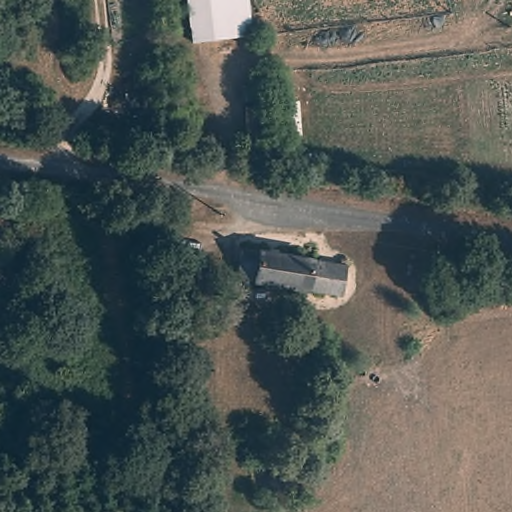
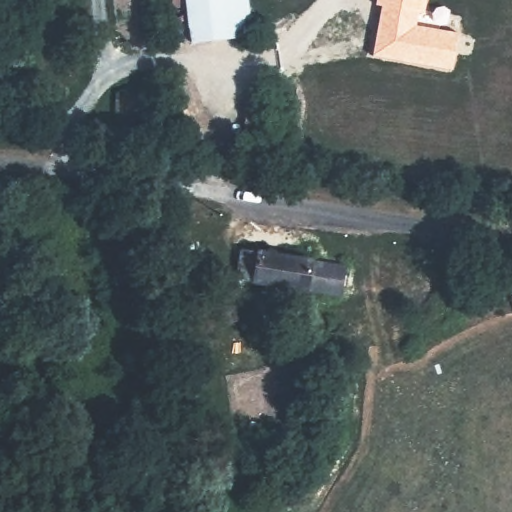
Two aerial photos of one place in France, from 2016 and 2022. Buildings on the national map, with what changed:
unchanged [(249,29),(191,35),(186,0),(245,0),(249,29)]
new [(382,7),(375,6),(376,0),(428,0),(426,15),(420,14),(418,26),(458,33),(452,71),(372,57),(382,7)]
unchanged [(220,215),(216,273),(195,271),(178,256),(181,209),(220,215)]
unchanged [(352,257),(352,290),(241,288),(243,254),(352,257)]

